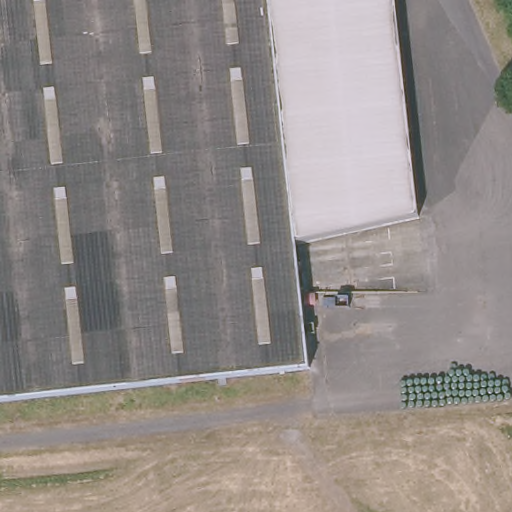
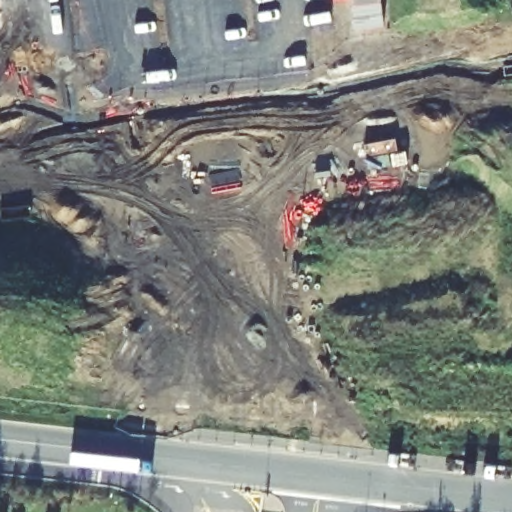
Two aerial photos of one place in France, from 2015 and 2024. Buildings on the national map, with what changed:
demolished [(418,215),(296,242),(307,368),(0,401),(0,0),(396,0),(418,215)]
new [(385,26),(352,29),(350,0),(381,0),(385,26)]

